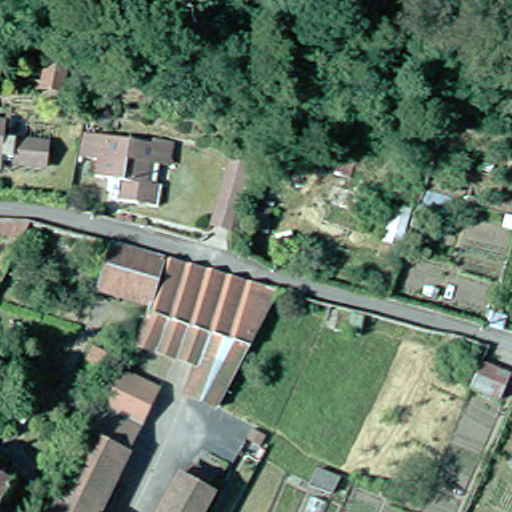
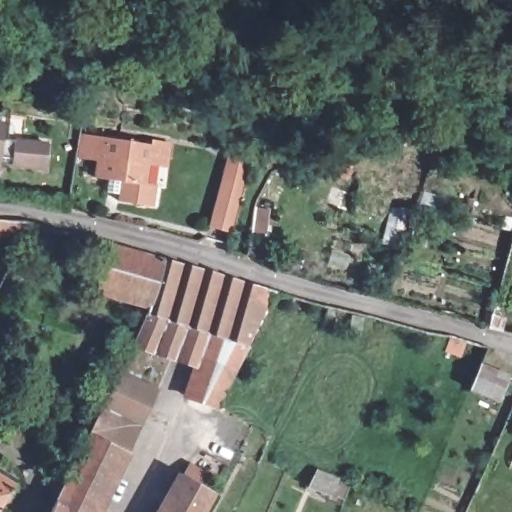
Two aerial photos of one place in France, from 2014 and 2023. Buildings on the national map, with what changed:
unchanged [(58,88),(39,83),(46,58),(66,63),(58,88)]
unchanged [(11,142),(55,146),(54,158),(52,158),(51,170),(19,166),(20,164),(9,163),(8,171),(0,170),(0,126),(12,127),(11,142)]
unchanged [(222,186),(232,139),(246,141),(251,153),(247,168),(242,190),(235,219),(215,214),(222,186)]
unchanged [(167,212),(163,212),(127,207),(131,187),(127,187),(126,201),(116,199),(117,185),(104,183),(107,166),(85,163),(86,160),(92,140),(159,149),(160,144),(179,146),(177,161),(160,159),(156,187),(166,188),(170,189),(167,212)]
unchanged [(360,154),(353,173),(336,166),(342,147),(360,154)]
unchanged [(272,199),(270,225),(252,224),(255,197),(272,199)]
unchanged [(20,234),(7,228),(15,213),(29,215),(20,234)]
unchanged [(148,303),(102,287),(111,256),(90,249),(95,233),(164,254),(148,303)]
unchanged [(148,303),(164,254),(278,289),(221,410),(220,412),(188,397),(200,365),(132,342),(148,303)]
unchanged [(99,353),(90,369),(80,364),(89,348),(99,353)]
unchanged [(505,366),(495,389),(471,379),(480,356),(505,366)]
unchanged [(58,492),(119,368),(157,389),(94,512),(48,512),(58,492)]
unchanged [(4,512),(0,512),(0,474),(20,487),(4,512)]
unchanged [(182,475),(216,494),(205,512),(161,512),(182,475)]

